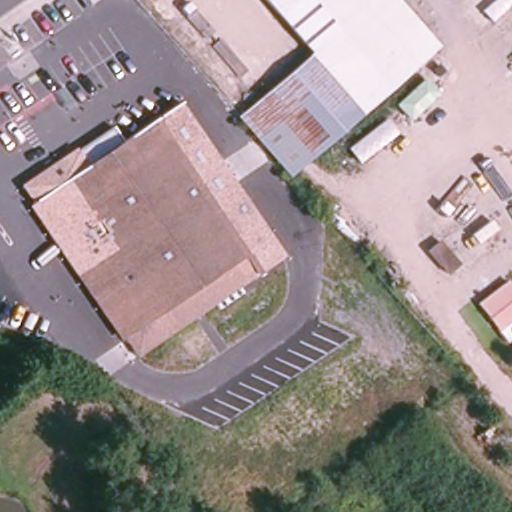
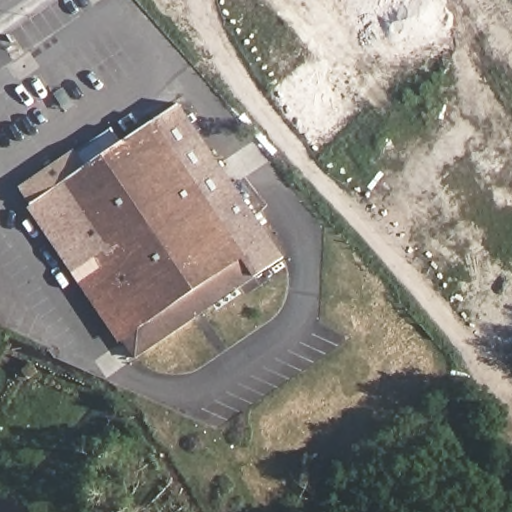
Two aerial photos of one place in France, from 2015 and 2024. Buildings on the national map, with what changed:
demolished [(241,120),(316,56),(268,0),(391,0),(437,55),(290,179),(241,120)]
demolished [(61,78),(101,50),(116,70),(74,99),(61,78)]
unchanged [(180,102),(284,257),(255,276),(135,359),(124,342),(243,265),(154,126),(180,102)]
unchanged [(104,157),(154,126),(243,265),(124,342),(79,271),(112,248),(69,180),(104,157)]
unchanged [(104,157),(69,180),(112,248),(79,271),(30,205),(19,187),(76,149),(77,151),(112,128),(124,145),(104,157)]
unchanged [(506,343),(498,332),(476,303),(507,280),(512,287),(512,339),(506,343)]

